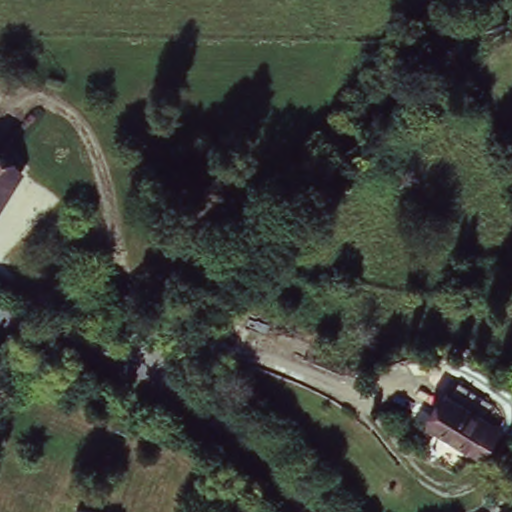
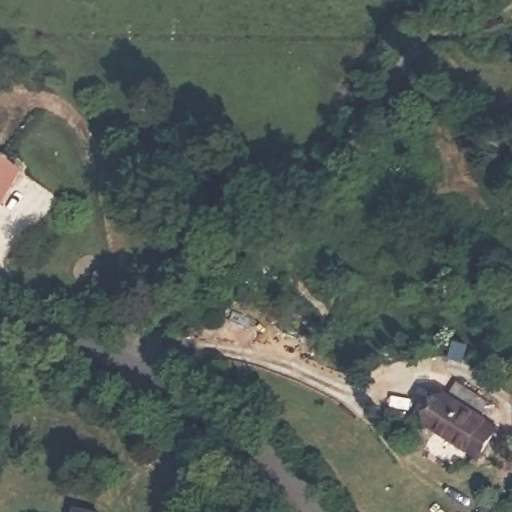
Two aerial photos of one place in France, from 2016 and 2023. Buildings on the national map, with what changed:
unchanged [(2,200),(0,204),(0,150),(17,162),(25,167),(2,200)]
unchanged [(471,463),(458,453),(422,422),(444,395),(448,398),(461,386),(488,410),(478,422),(483,426),(494,435),(471,463)]

